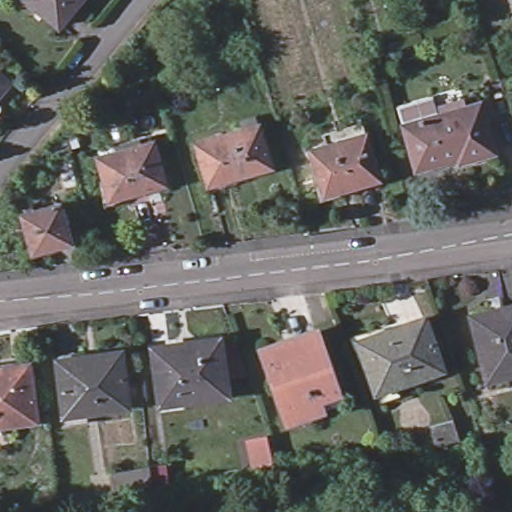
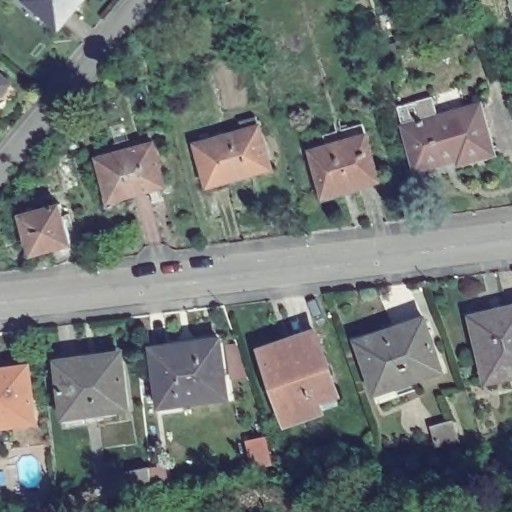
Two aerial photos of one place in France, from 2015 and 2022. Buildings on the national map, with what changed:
unchanged [(59,27),(26,0),(82,0),(59,27)]
unchanged [(510,0),(512,0),(512,4),(510,0)]
unchanged [(0,75),(10,83),(9,84),(18,92),(0,113),(0,75)]
unchanged [(501,164),(465,174),(464,170),(422,182),(409,136),(486,114),(501,164)]
unchanged [(208,192),(196,149),(242,136),(240,127),(256,122),(259,131),(260,131),(272,173),(208,192)]
unchanged [(379,190),(325,205),(312,162),(327,157),(324,146),(362,134),(379,190)]
unchanged [(52,145),(67,139),(76,137),(79,147),(70,149),(71,152),(56,157),(52,145)]
unchanged [(164,186),(110,201),(98,159),(154,143),(160,165),(159,166),(164,186)]
unchanged [(32,254),(22,216),(46,209),(44,200),(59,196),(61,205),(72,243),(32,254)]
unchanged [(510,381),(509,377),(487,382),(472,317),(512,307),(512,380),(510,381)]
unchanged [(380,402),(377,392),(359,342),(425,318),(442,370),(397,386),(400,396),(380,402)]
unchanged [(316,406),(282,417),(258,346),(312,327),(332,388),(336,398),(316,406)]
unchanged [(227,397),(161,406),(153,349),(220,340),(227,397)]
unchanged [(67,427),(65,417),(58,362),(121,353),(127,407),(87,413),(88,423),(67,427)]
unchanged [(36,422),(0,426),(0,370),(29,367),(36,422)]
unchanged [(436,442),(434,423),(457,421),(459,441),(436,442)]
unchanged [(111,476),(149,466),(149,465),(162,462),(167,487),(152,490),(152,486),(115,497),(111,476)]

